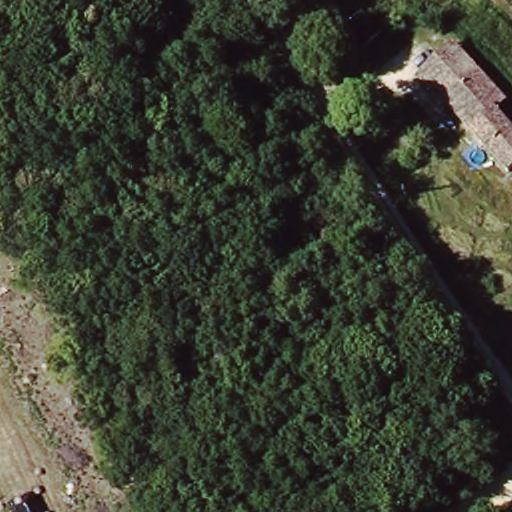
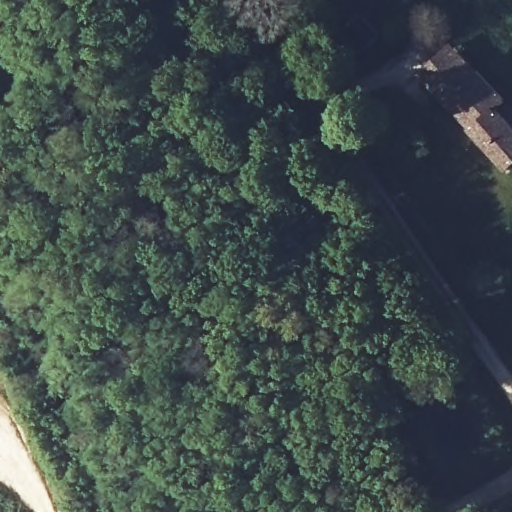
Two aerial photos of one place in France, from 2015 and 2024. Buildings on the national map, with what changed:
unchanged [(510,100),(497,111),(492,106),(469,130),(418,75),(455,42),(510,100)]
unchanged [(506,169),(469,130),(492,106),(497,111),(512,126),(512,164),(506,169)]

